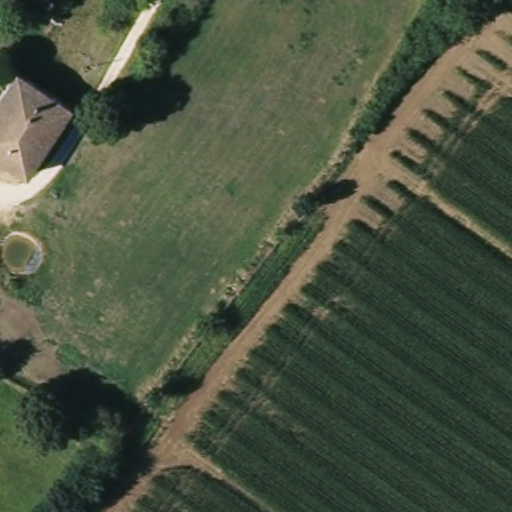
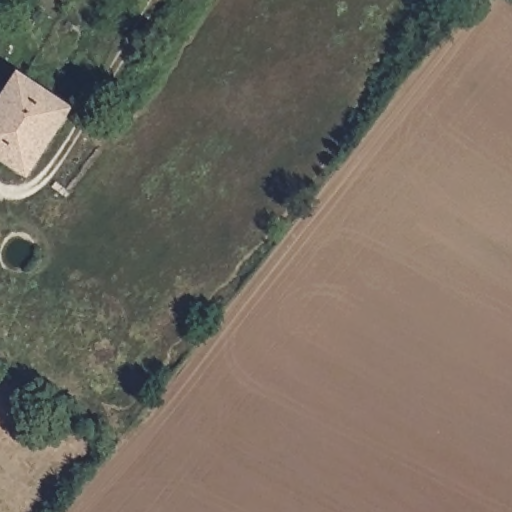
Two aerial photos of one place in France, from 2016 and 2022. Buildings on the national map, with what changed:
unchanged [(38,81),(71,104),(27,171),(0,153),(0,96),(18,68),(38,81)]

